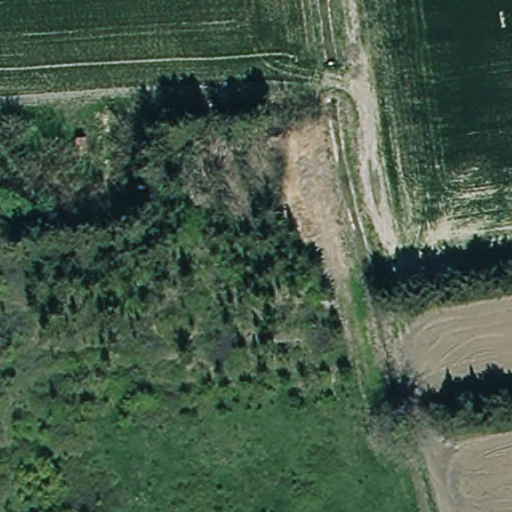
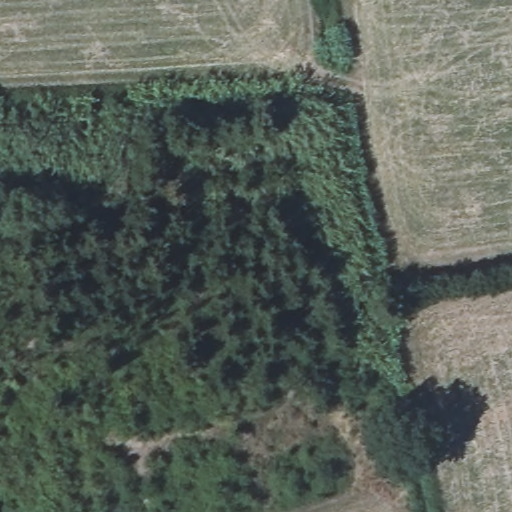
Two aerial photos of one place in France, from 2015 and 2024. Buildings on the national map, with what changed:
[]

